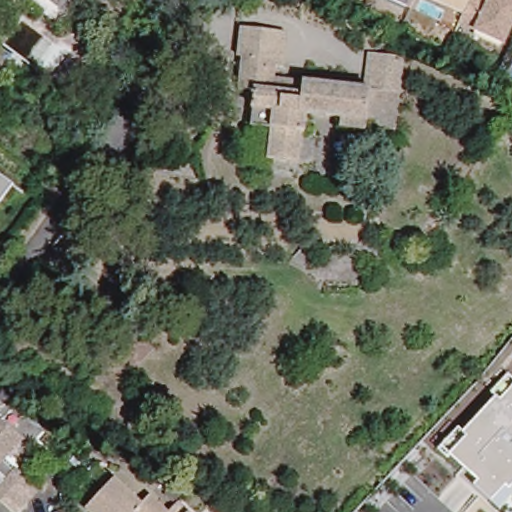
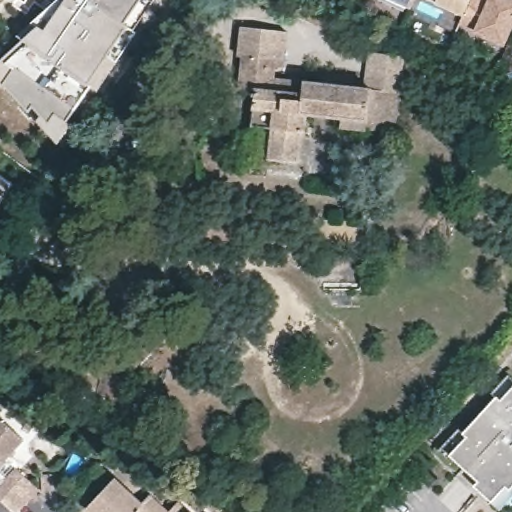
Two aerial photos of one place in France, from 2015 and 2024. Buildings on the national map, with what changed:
new [(135,31),(130,27),(54,137),(0,78),(0,60),(11,51),(0,46),(0,0),(156,0),(135,31)]
unchanged [(408,9),(389,0),(412,0),(408,9)]
unchanged [(462,12),(433,0),(467,0),(462,12)]
unchanged [(512,25),(505,43),(457,22),(462,12),(467,0),(512,0),(512,25)]
unchanged [(399,26),(391,42),(379,36),(387,21),(399,26)]
unchanged [(347,119),(312,115),(311,132),(306,132),(304,162),(274,160),(277,129),(256,127),(260,89),(245,88),(248,57),(242,57),(245,26),(292,31),(289,62),(282,61),(279,77),(303,80),(369,87),(373,53),(407,57),(399,132),(371,129),(345,129),(347,119)]
unchanged [(13,182),(0,201),(0,173),(13,182)]
unchanged [(455,469),(460,464),(442,447),(460,427),(464,431),(497,398),(492,392),(510,373),(512,376),(512,497),(500,509),(475,487),(455,469)]
unchanged [(24,439),(0,467),(0,418),(24,439)]
unchanged [(2,487),(14,474),(36,494),(24,507),(2,487)]
unchanged [(112,478),(140,505),(149,494),(167,511),(166,512),(86,512),(84,510),(112,478)]
unchanged [(191,512),(166,512),(167,511),(177,500),(191,512)]

